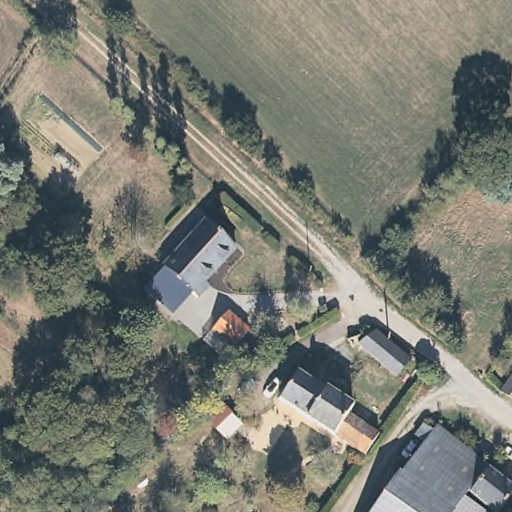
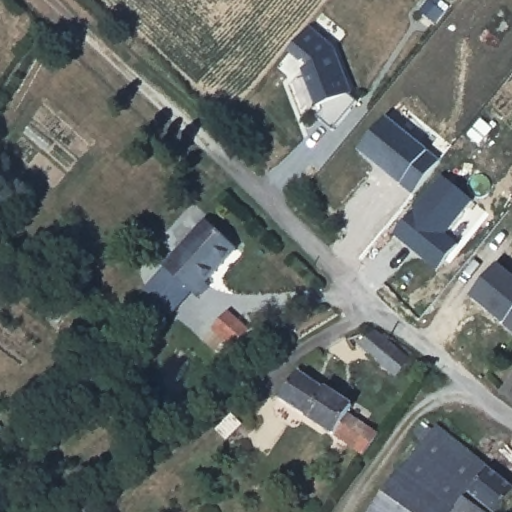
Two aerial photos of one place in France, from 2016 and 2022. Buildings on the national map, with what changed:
new [(317,116),(323,110),(321,105),(316,107),(303,70),(306,66),(290,52),(310,26),(333,46),(351,94),(348,95),(356,102),(333,130),(317,116)]
new [(387,118),(440,160),(412,194),(359,150),(387,118)]
new [(444,234),(457,245),(437,270),(393,235),(442,177),(471,200),(444,234)]
unchanged [(209,219),(239,246),(205,282),(210,286),(196,301),(161,270),(209,219)]
new [(471,296),(497,265),(512,277),(512,331),(502,322),(471,296)]
unchanged [(251,328),(238,343),(218,329),(231,313),(251,328)]
new [(395,378),(355,345),(375,331),(410,361),(395,378)]
unchanged [(262,338),(271,355),(259,362),(250,345),(262,338)]
unchanged [(347,403),(349,399),(374,416),(371,421),(384,430),(365,457),(279,399),(298,370),(347,403)]
unchanged [(512,389),(506,384),(512,377),(512,389)]
unchanged [(412,443),(422,431),(429,437),(437,428),(512,486),(512,505),(506,512),(483,512),(414,459),(421,450),(412,443)]
unchanged [(372,512),(414,459),(483,512),(372,512)]

